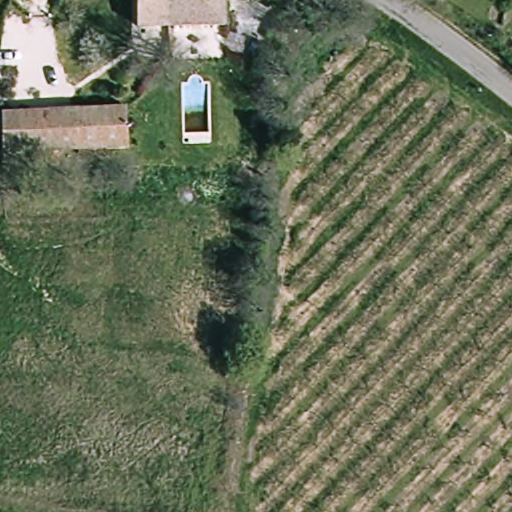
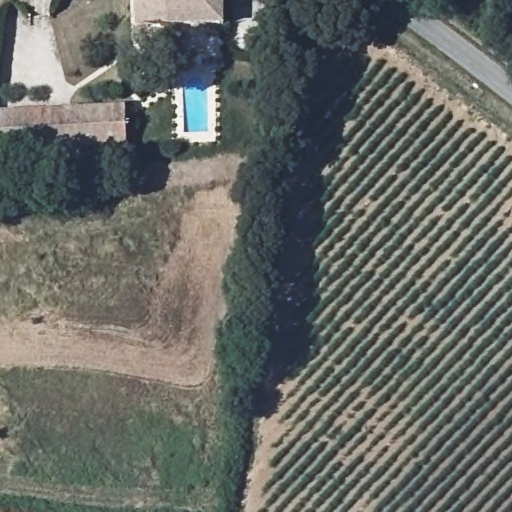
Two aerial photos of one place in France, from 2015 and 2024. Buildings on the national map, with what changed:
unchanged [(225,0),(225,24),(168,26),(137,25),(137,0),(225,0)]
unchanged [(127,106),(128,148),(1,150),(1,109),(127,106)]

